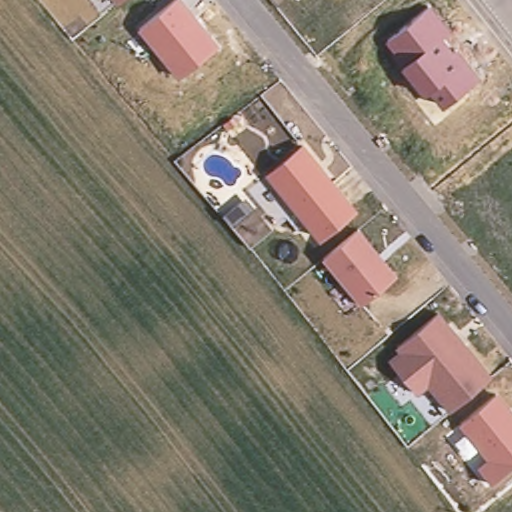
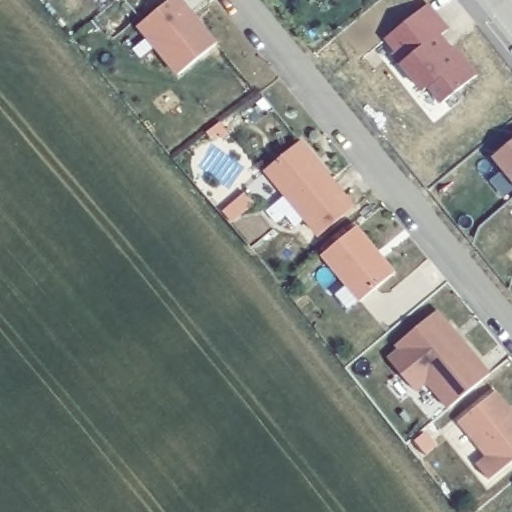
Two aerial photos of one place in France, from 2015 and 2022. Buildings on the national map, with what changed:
unchanged [(116,0),(119,0),(117,2),(116,0)]
unchanged [(171,0),(184,0),(220,43),(178,78),(137,29),(171,0)]
unchanged [(427,89),(422,94),(401,66),(385,43),(431,4),(452,30),(443,39),(453,51),(457,48),(480,77),(442,107),(427,89)]
new [(512,142),(512,181),(492,157),(512,142)]
unchanged [(303,143),(358,207),(320,239),(265,174),(303,143)]
unchanged [(333,255),(368,226),(406,271),(372,300),(333,255)]
unchanged [(400,358),(412,348),(408,343),(448,310),(502,373),(465,404),(462,407),(438,380),(427,389),(400,358)]
unchanged [(512,409),(512,464),(491,481),(477,465),(487,456),(462,423),(498,392),(512,409)]

